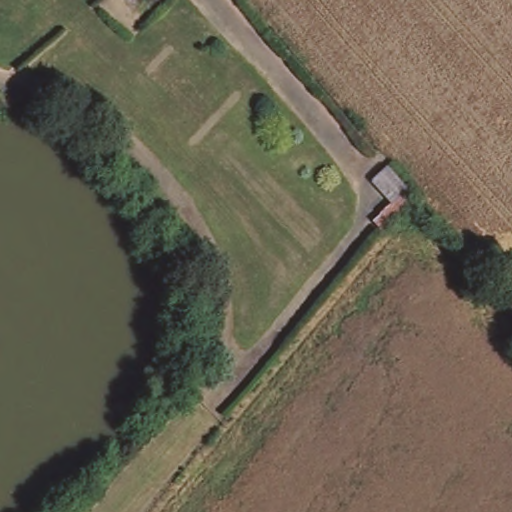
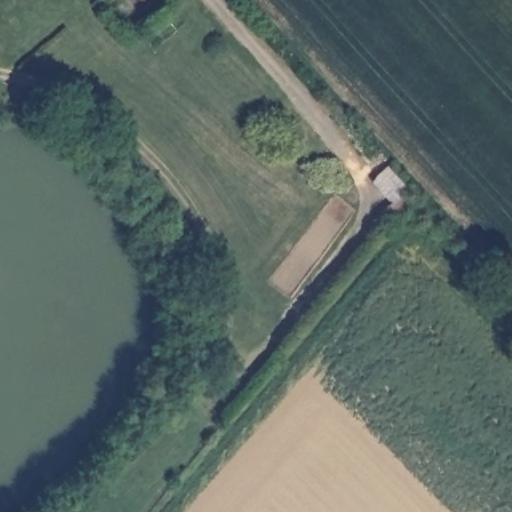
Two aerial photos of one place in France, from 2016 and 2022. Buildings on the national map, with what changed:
unchanged [(380,232),(371,221),(391,204),(369,181),(386,166),(413,197),(400,214),(391,224),(380,232)]

